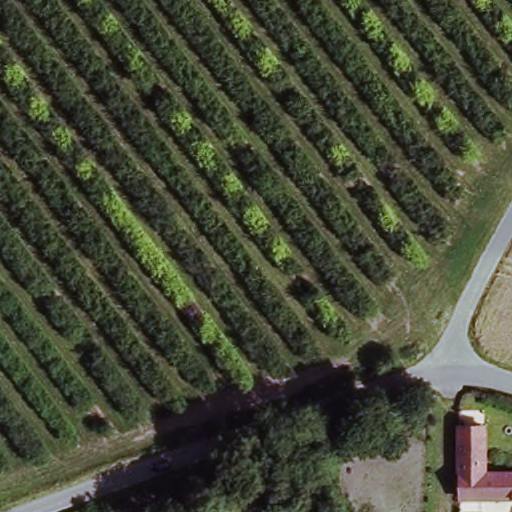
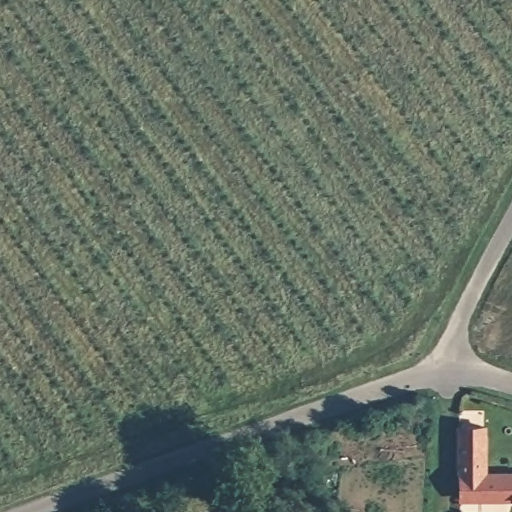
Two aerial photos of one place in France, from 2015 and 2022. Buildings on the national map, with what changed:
unchanged [(484,470),(456,470),(459,423),(484,423),(484,470)]
unchanged [(501,505),(493,500),(454,500),(456,470),(484,470),(512,470),(512,505),(501,505)]

